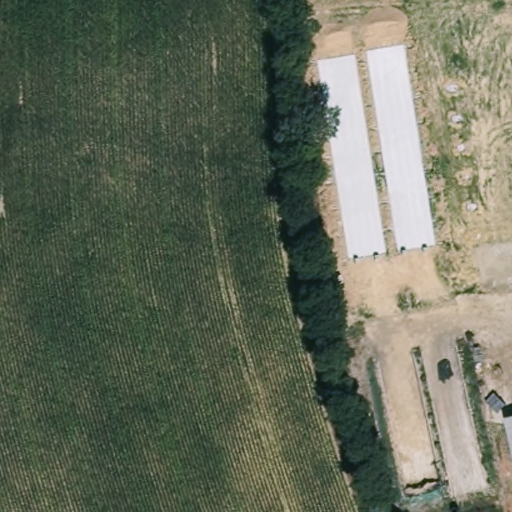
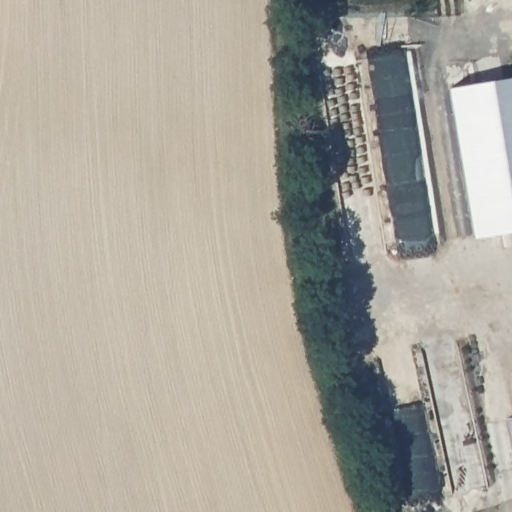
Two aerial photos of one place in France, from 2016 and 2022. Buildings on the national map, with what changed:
new [(512,236),(468,244),(443,95),(512,83),(512,236)]
unchanged [(512,415),(512,445),(506,416),(512,415)]

